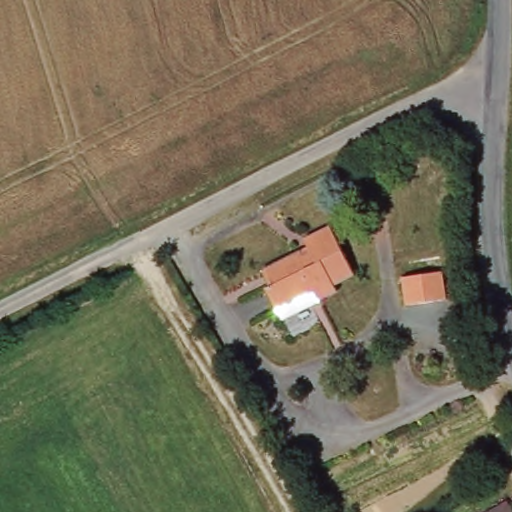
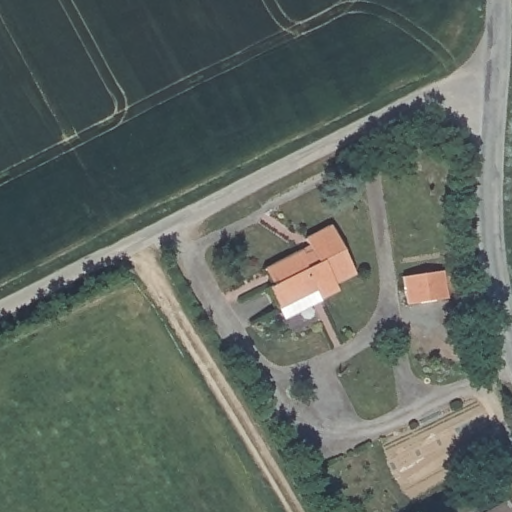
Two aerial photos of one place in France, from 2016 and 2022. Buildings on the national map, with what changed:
unchanged [(302,252),(305,258),(312,254),(306,239),(331,227),(355,274),(334,284),(338,292),(319,300),(314,290),(276,309),(265,288),(270,285),(263,271),(302,252)]
unchanged [(403,279),(443,272),(447,300),(406,305),(403,279)]
unchanged [(508,501),(512,508),(512,512),(489,512),(508,501)]

